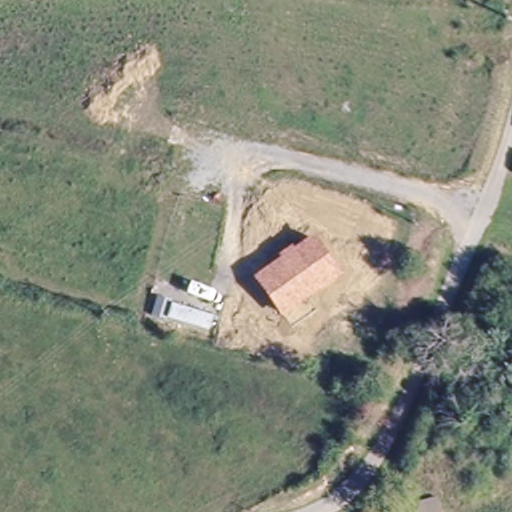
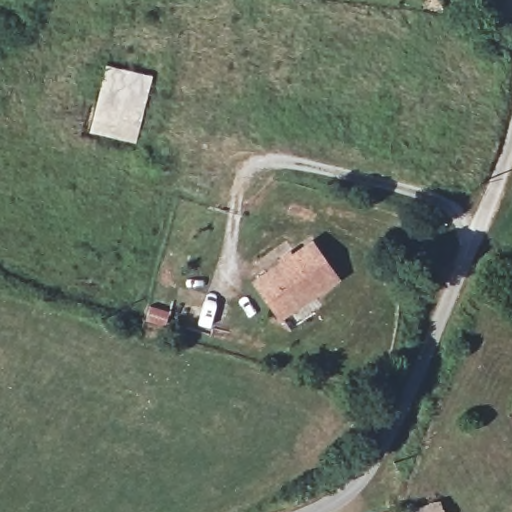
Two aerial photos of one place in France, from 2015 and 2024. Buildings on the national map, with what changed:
new [(89,133),(106,64),(153,75),(136,144),(89,133)]
unchanged [(278,260),(275,256),(289,247),(291,250),(313,237),(340,277),(279,319),(250,280),(278,260)]

